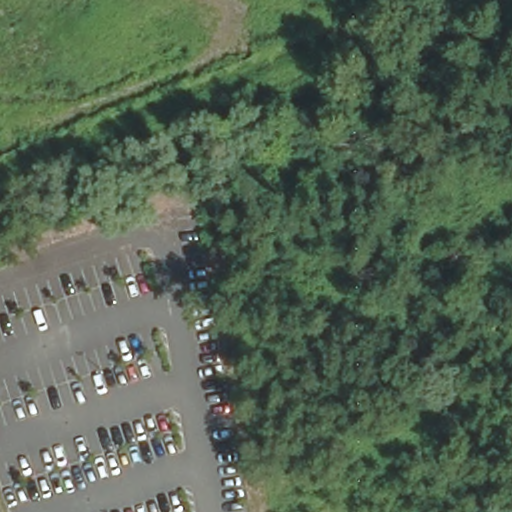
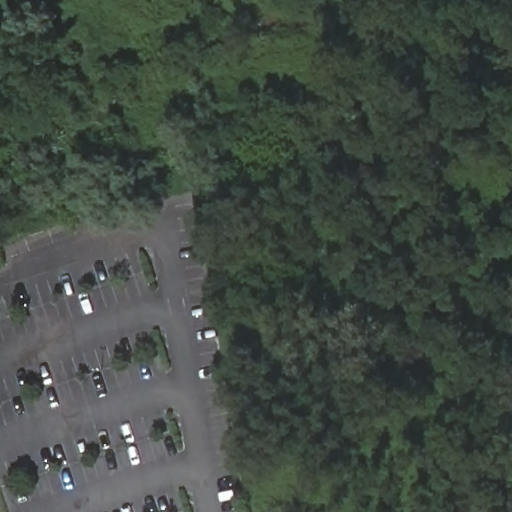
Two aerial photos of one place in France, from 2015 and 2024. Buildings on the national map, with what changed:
[]

